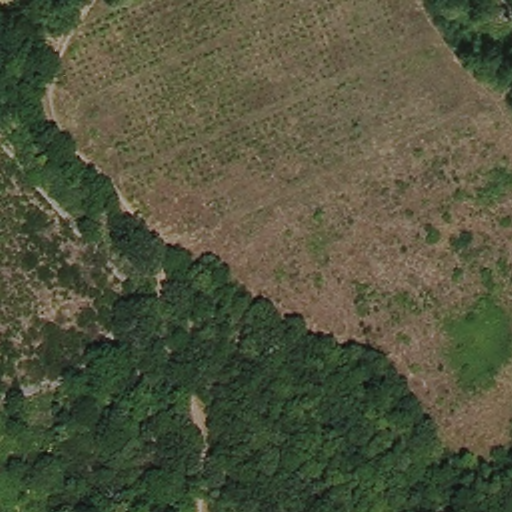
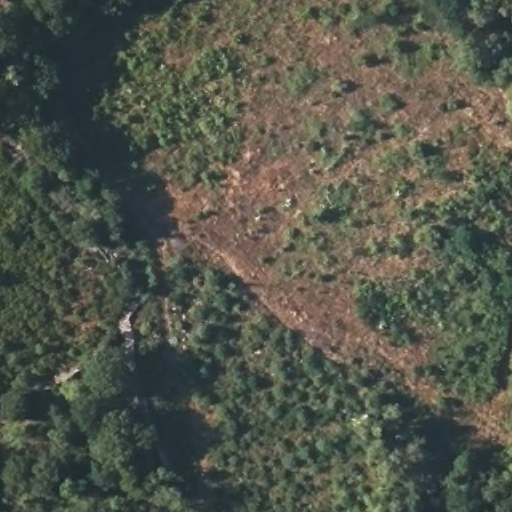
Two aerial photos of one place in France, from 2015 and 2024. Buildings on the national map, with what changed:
[]

